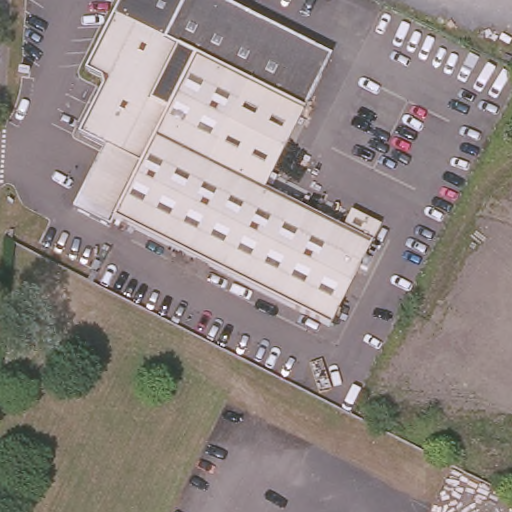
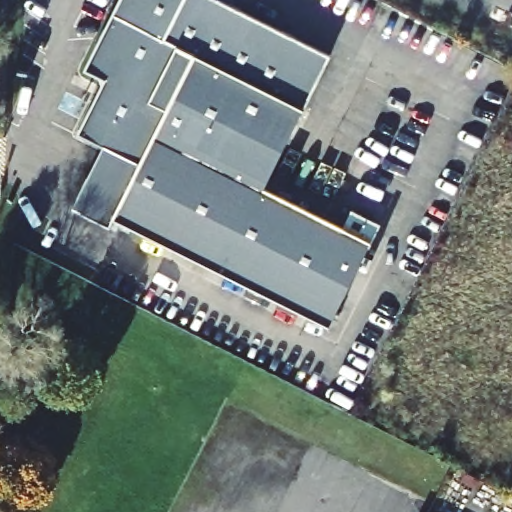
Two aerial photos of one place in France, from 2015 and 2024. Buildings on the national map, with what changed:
unchanged [(80,126),(101,84),(99,75),(89,69),(88,61),(118,0),(225,0),(329,52),(263,187),(343,227),(351,209),(379,223),(329,324),(116,217),(111,225),(75,207),(95,167),(106,144),(82,133),(80,126)]

